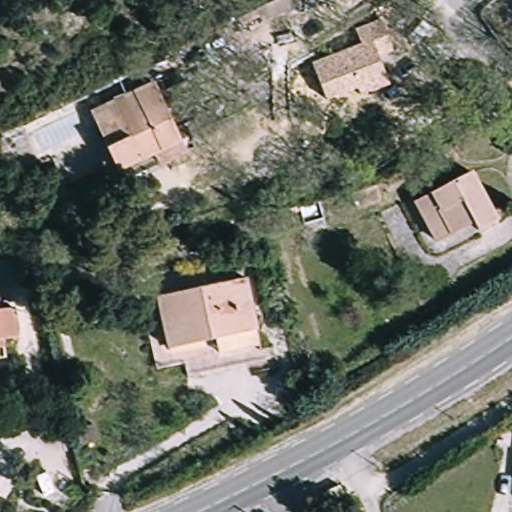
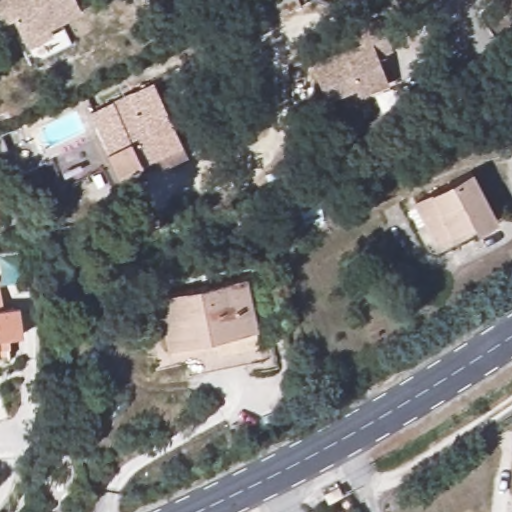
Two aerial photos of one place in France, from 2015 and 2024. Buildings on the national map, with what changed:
new [(56,14),(66,37),(24,57),(14,34),(19,31),(13,19),(3,24),(0,19),(0,0),(75,0),(77,4),(56,14)]
unchanged [(383,19),(394,50),(378,56),(390,85),(360,99),(358,89),(329,102),(314,61),(360,44),(356,29),(383,19)]
unchanged [(117,169),(89,107),(155,76),(183,138),(191,134),(194,144),(122,178),(117,169)]
unchanged [(497,222),(478,232),(473,223),(436,241),(416,203),(472,174),(497,222)]
unchanged [(381,200),(355,209),(350,194),(376,185),(381,200)]
unchanged [(262,217),(267,236),(237,244),(232,224),(262,217)]
unchanged [(247,278),(259,330),(258,330),(240,334),(181,347),(171,349),(159,297),(247,278)]
unchanged [(14,309),(17,338),(3,339),(5,359),(0,359),(0,310),(14,309)]
unchanged [(258,330),(264,362),(187,378),(181,347),(240,334),(258,330)]
unchanged [(343,495),(329,504),(323,494),(338,486),(343,495)]

